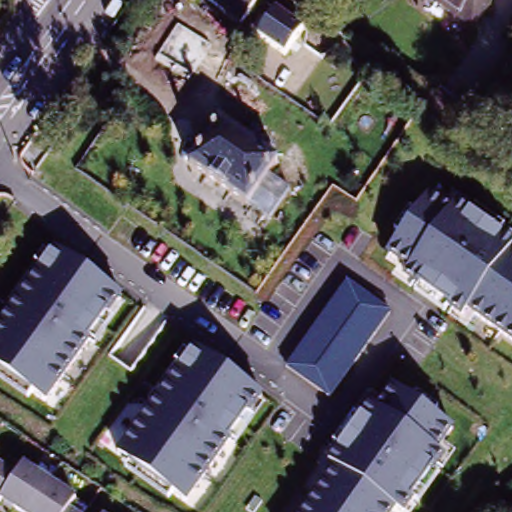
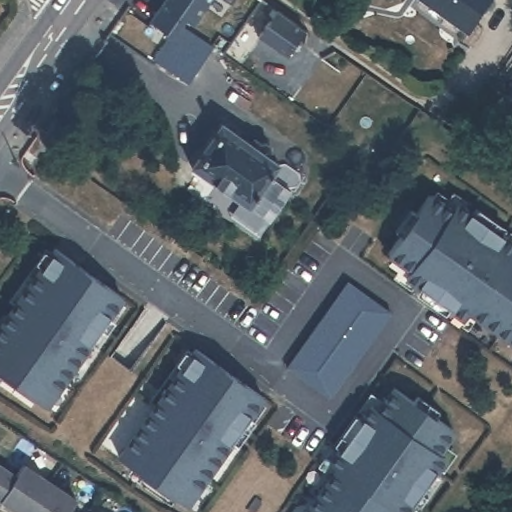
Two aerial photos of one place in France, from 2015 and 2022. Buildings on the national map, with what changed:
unchanged [(271,3),(259,21),(250,15),(244,25),(208,0),(267,0),(271,3)]
unchanged [(473,26),(437,0),(491,0),(473,26)]
demolished [(172,1),(184,9),(170,29),(159,21),(172,1)]
unchanged [(288,56),(260,36),(274,16),(279,8),(294,19),(307,28),(288,56)]
new [(178,23),(209,43),(191,71),(187,78),(155,59),(159,52),(178,23)]
unchanged [(219,125),(246,144),(250,138),(259,145),(265,144),(271,148),(272,154),(268,159),(275,164),(267,176),(245,206),(189,167),(219,125)]
unchanged [(267,176),(290,193),(269,223),(245,206),(267,176)]
unchanged [(512,242),(512,345),(385,259),(438,187),(512,242)]
unchanged [(52,411),(0,377),(0,326),(53,247),(126,298),(52,411)]
unchanged [(390,309),(334,396),(287,365),(349,282),(390,309)]
unchanged [(188,512),(184,512),(114,471),(198,345),(263,400),(188,512)]
unchanged [(399,512),(296,512),(376,384),(456,426),(399,512)]
unchanged [(0,457),(0,452),(3,454),(0,457)]
unchanged [(29,468),(80,501),(74,512),(16,512),(5,506),(3,510),(0,508),(0,467),(21,481),(29,468)]

